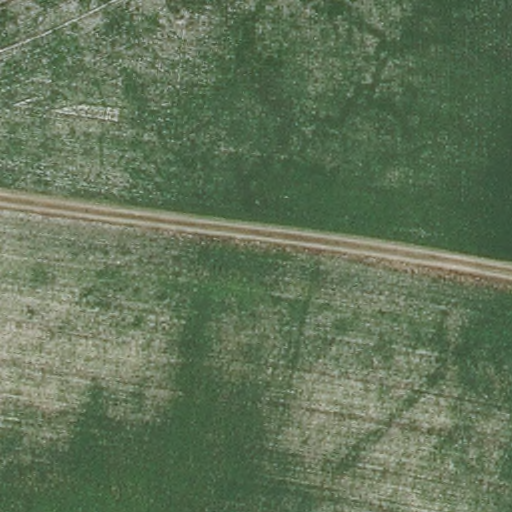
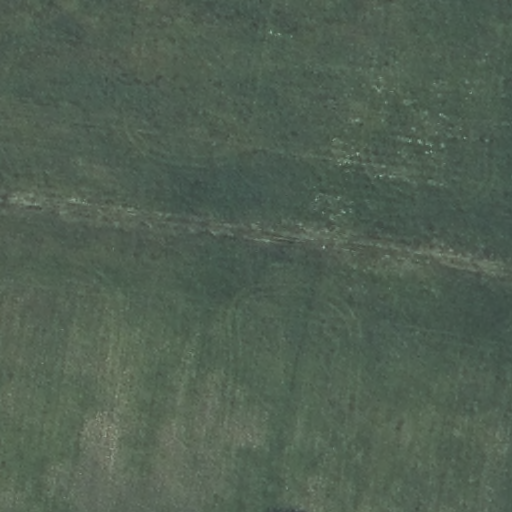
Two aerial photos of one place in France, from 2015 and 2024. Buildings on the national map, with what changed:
[]

